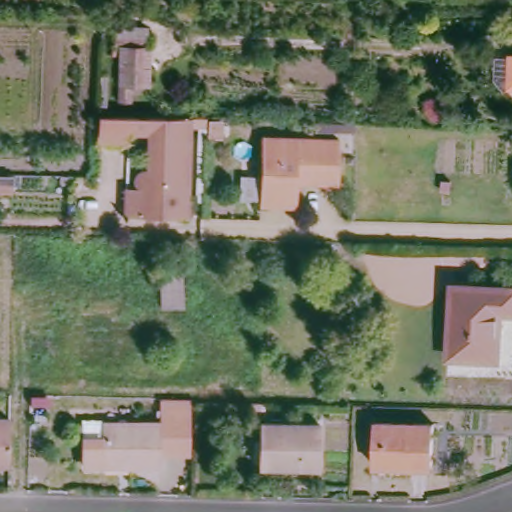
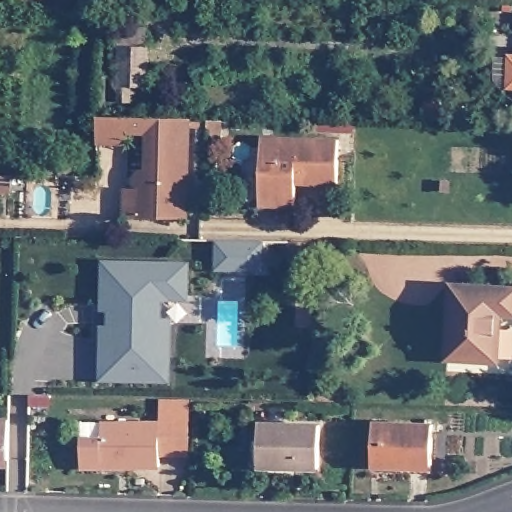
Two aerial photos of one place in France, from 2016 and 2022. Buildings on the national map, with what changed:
unchanged [(151,30),(150,69),(134,69),(133,81),(120,81),(123,29),(151,30)]
unchanged [(99,115),(186,117),(186,132),(193,132),(191,217),(146,215),(145,188),(144,188),(143,188),(143,187),(142,187),(142,186),(141,186),(141,185),(141,184),(140,184),(140,183),(139,183),(139,181),(139,180),(140,178),(141,177),(141,175),(143,175),(143,174),(144,174),(145,173),(146,173),(146,131),(127,131),(128,143),(98,142),(99,115)]
unchanged [(220,120),(220,136),(208,135),(208,120),(220,120)]
unchanged [(353,136),(314,136),(314,129),(353,130),(353,136)]
unchanged [(293,209),(260,208),(261,143),(336,145),(336,187),(305,186),(301,182),(294,182),(293,209)]
new [(123,218),(123,189),(135,188),(132,183),(132,178),(133,174),(137,170),(146,166),(146,173),(145,173),(144,174),(143,174),(143,175),(141,175),(141,177),(140,178),(139,180),(139,181),(139,183),(140,183),(140,184),(141,184),(141,185),(141,186),(142,186),(142,187),(143,187),(143,188),(144,188),(145,188),(146,215),(123,218)]
unchanged [(14,175),(13,190),(0,190),(0,175),(14,175)]
new [(215,271),(215,241),(264,241),(264,271),(215,271)]
demolished [(175,304),(158,303),(158,259),(176,259),(175,304)]
new [(189,301),(163,300),(163,318),(171,318),(171,384),(98,382),(101,260),(189,261),(189,301)]
unchanged [(512,311),(503,311),(500,358),(449,356),(453,285),(512,285),(512,311)]
unchanged [(175,396),(193,396),(191,455),(173,454),(174,415),(175,396)]
unchanged [(102,466),(103,463),(82,463),(83,438),(103,438),(103,423),(158,424),(158,415),(174,415),(173,454),(156,453),(156,467),(102,466)]
unchanged [(7,423),(5,462),(0,461),(0,422),(7,423)]
unchanged [(431,424),(429,463),(397,462),(398,467),(369,466),(371,423),(431,424)]
unchanged [(318,426),(316,467),(256,466),(257,425),(318,426)]

